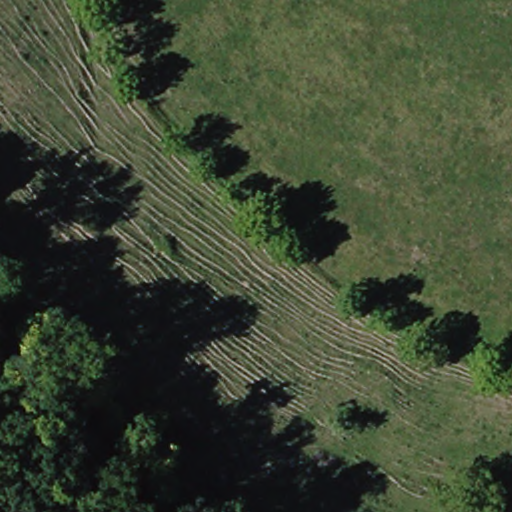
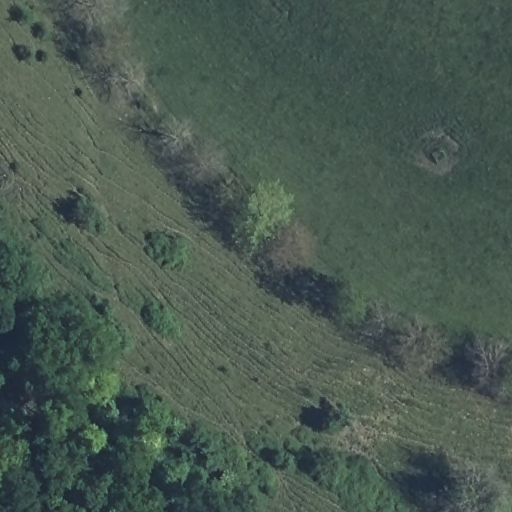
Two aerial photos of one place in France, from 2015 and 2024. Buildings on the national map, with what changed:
[]

